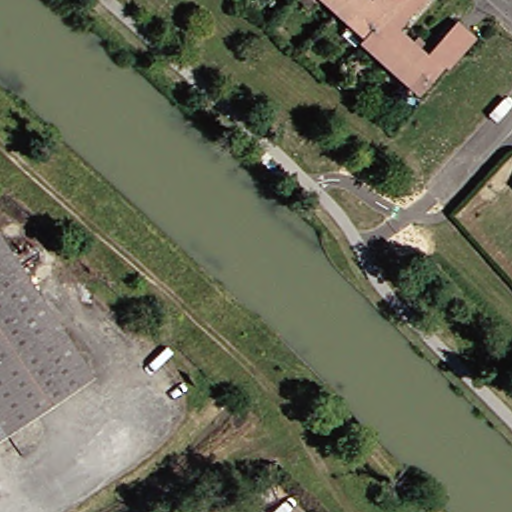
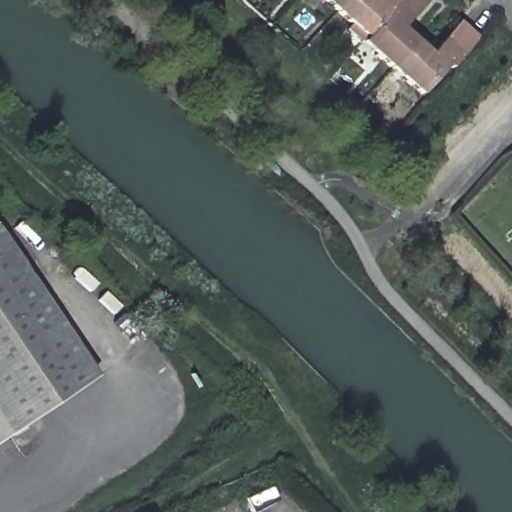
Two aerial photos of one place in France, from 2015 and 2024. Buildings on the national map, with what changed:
unchanged [(312,4),(308,0),(317,0),(312,4)]
unchanged [(379,77),(385,69),(356,43),(360,38),(318,0),(364,0),(365,1),(366,0),(421,0),(394,30),(408,43),(412,38),(426,51),(452,22),(471,39),(444,70),(440,67),(414,95),(400,83),(393,90),(379,77)]
unchanged [(9,437),(0,423),(0,237),(95,379),(9,437)]
unchanged [(0,443),(0,423),(9,437),(0,443)]
unchanged [(270,488),(277,503),(257,512),(248,512),(243,501),(270,488)]

